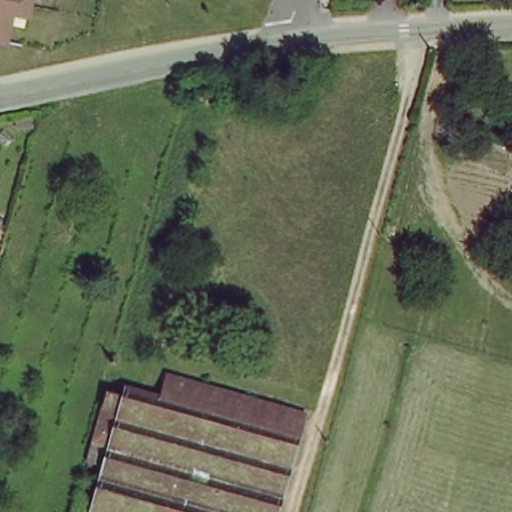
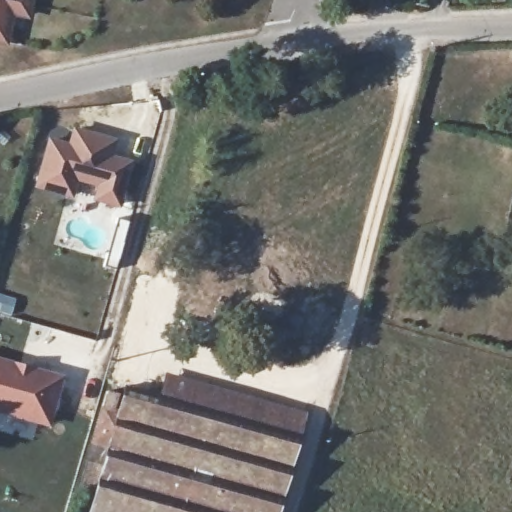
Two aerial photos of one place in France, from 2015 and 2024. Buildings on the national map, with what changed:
unchanged [(15,18),(8,46),(0,44),(0,0),(34,0),(30,21),(15,18)]
new [(97,201),(73,194),(39,184),(52,139),(72,144),(76,127),(116,139),(112,156),(115,161),(130,165),(120,203),(97,197),(98,197),(97,201)]
new [(0,413),(0,358),(63,376),(49,427),(0,413)]
unchanged [(300,441),(281,512),(102,512),(117,456),(93,451),(109,395),(120,398),(115,412),(123,417),(130,392),(300,441)]

